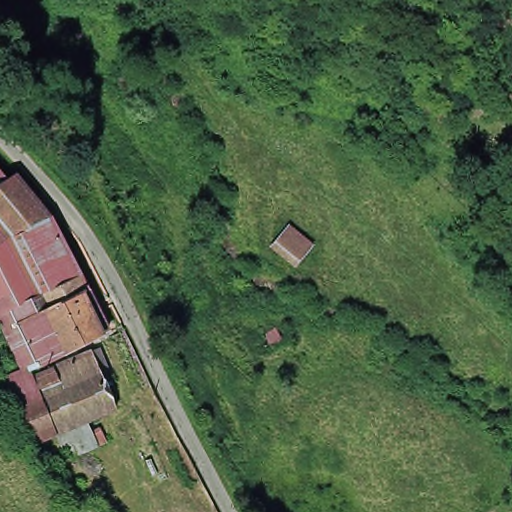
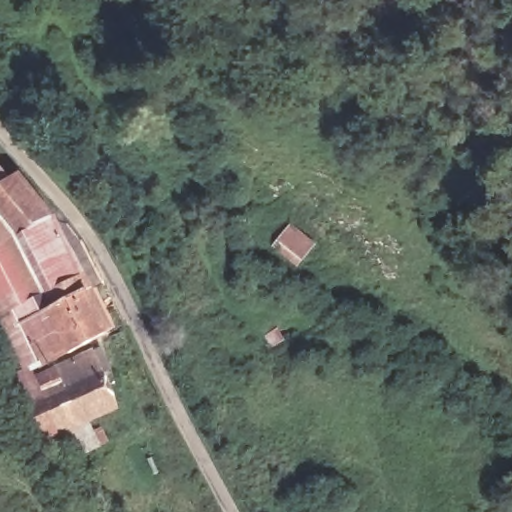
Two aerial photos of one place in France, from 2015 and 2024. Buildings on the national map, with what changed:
unchanged [(2,161),(57,222),(114,332),(23,371),(0,329),(0,162),(2,161)]
unchanged [(314,243),(297,267),(273,248),(291,225),(314,243)]
unchanged [(92,357),(110,391),(134,385),(141,405),(32,447),(17,416),(40,405),(33,382),(92,357)]

